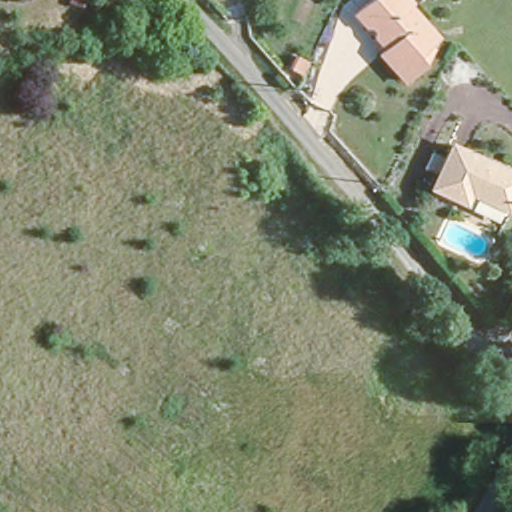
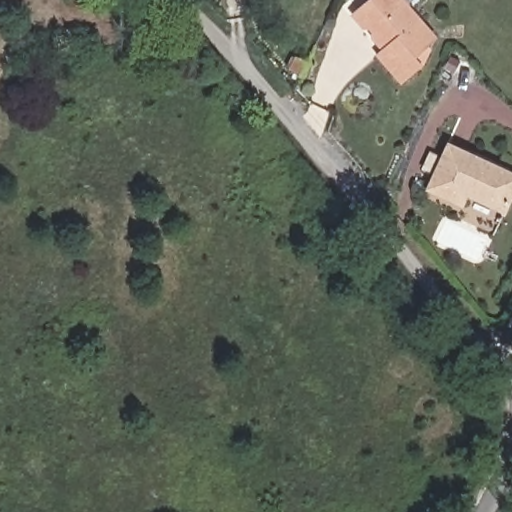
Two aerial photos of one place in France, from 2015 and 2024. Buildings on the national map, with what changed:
unchanged [(359,0),(411,0),(410,1),(434,29),(412,47),(420,56),(399,75),(377,47),(381,44),(350,8),(356,3),(359,0)]
unchanged [(456,202),(426,188),(448,143),(512,174),(512,190),(502,210),(461,191),(456,202)]

